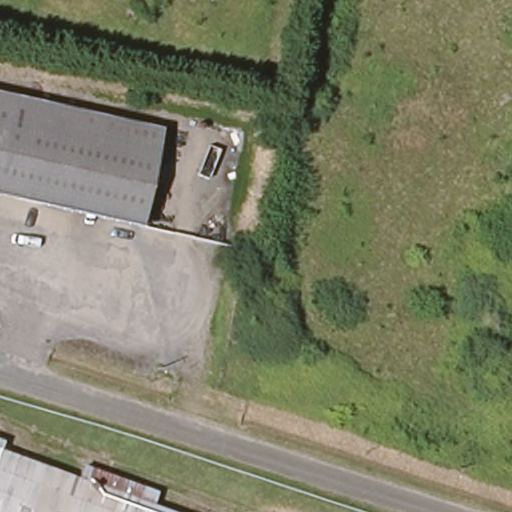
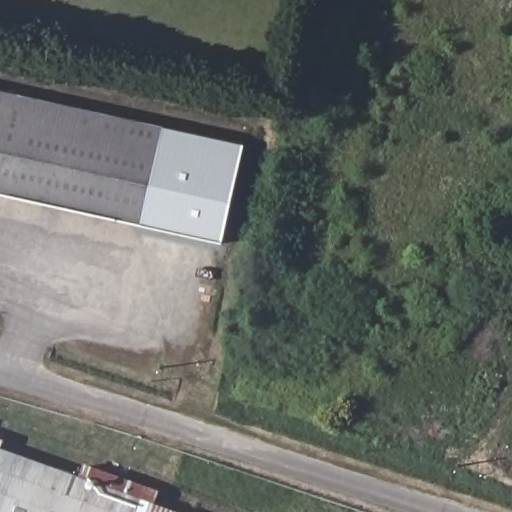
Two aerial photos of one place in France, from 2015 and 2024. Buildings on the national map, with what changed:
unchanged [(144,227),(0,193),(0,89),(167,129),(144,227)]
new [(243,146),(222,244),(144,227),(167,129),(243,146)]
unchanged [(166,512),(0,512),(0,453),(166,512)]

